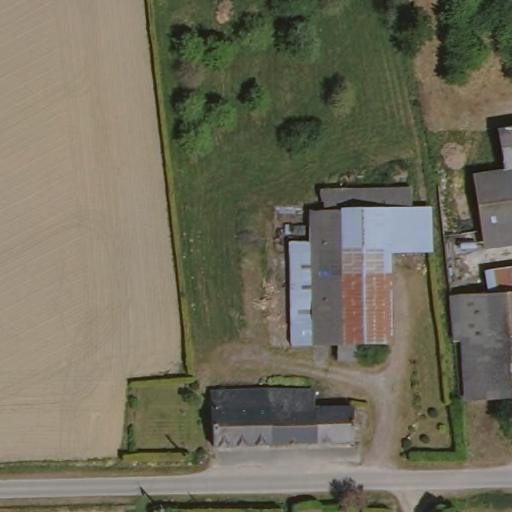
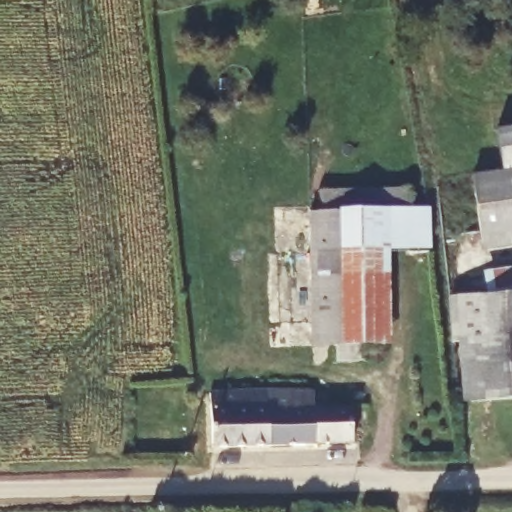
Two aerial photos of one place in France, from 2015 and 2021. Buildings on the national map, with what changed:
unchanged [(477,183),(504,180),(499,134),(512,132),(512,232),(484,235),(477,183)]
unchanged [(388,209),(350,210),(353,345),(348,345),(294,346),(294,339),(291,241),(311,241),(311,209),(321,209),(321,190),(408,188),(409,206),(425,206),(426,251),(389,252),(388,209)]
unchanged [(350,210),(388,209),(389,252),(388,346),(364,347),(365,360),(348,360),(348,345),(353,345),(350,210)]
unchanged [(485,275),(512,270),(512,289),(488,292),(485,275)]
unchanged [(473,336),(456,338),(449,297),(488,292),(512,289),(512,391),(482,395),(473,336)]
unchanged [(213,395),(267,392),(310,390),(311,407),(347,405),(349,436),(268,441),(215,444),(213,395)]
unchanged [(321,512),(299,512),(299,511),(321,511),(321,512)]

